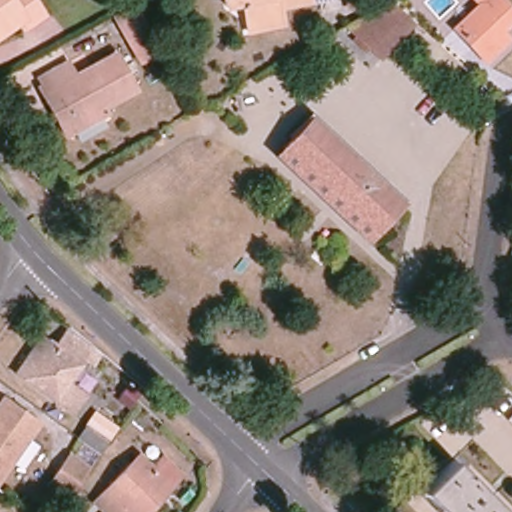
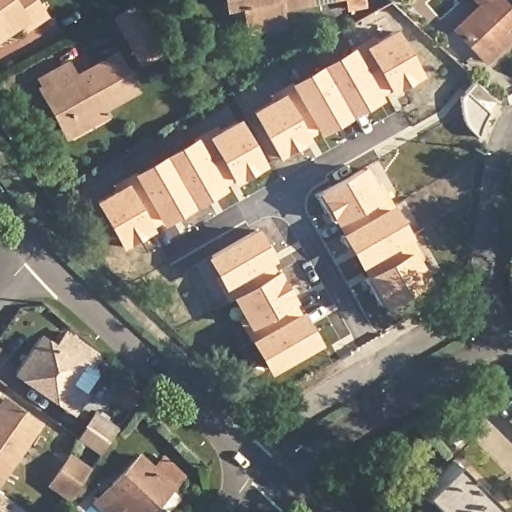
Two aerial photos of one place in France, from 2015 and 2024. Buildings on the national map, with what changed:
unchanged [(25,24),(20,16),(0,30),(0,0),(35,0),(42,11),(25,24)]
unchanged [(283,13),(245,21),(242,9),(221,14),(219,0),(297,0),(281,4),(283,13)]
unchanged [(476,0),(499,0),(512,13),(512,21),(502,31),(510,40),(486,64),(453,29),(479,4),(476,0)]
demolished [(407,18),(374,56),(343,27),(388,1),(407,18)]
unchanged [(117,25),(122,21),(135,15),(151,42),(133,53),(117,25)]
new [(270,98),(267,93),(288,81),(353,45),(371,35),(373,39),(394,26),(421,75),(275,157),(249,110),(270,98)]
unchanged [(38,80),(67,63),(75,76),(116,54),(136,90),(69,128),(49,93),(46,94),(38,80)]
new [(113,189),(110,183),(132,171),(196,136),(214,126),(214,130),(238,117),(265,165),(120,247),(93,200),(113,189)]
demolished [(372,236),(280,151),(310,119),(401,205),(372,236)]
new [(364,164),(375,184),(379,181),(390,203),(392,202),(411,236),(406,238),(431,279),(382,308),(316,193),(364,164)]
new [(255,226),(320,344),(267,374),(247,340),(235,318),(240,315),(230,298),(226,301),(214,278),(215,276),(204,255),(255,226)]
unchanged [(93,367),(84,361),(65,390),(81,401),(72,414),(56,402),(24,379),(49,342),(56,348),(65,333),(100,357),(93,367)]
unchanged [(0,477),(0,405),(4,400),(39,425),(0,477)]
unchanged [(77,439),(84,430),(96,413),(117,429),(105,446),(100,455),(77,439)]
unchanged [(506,422),(512,416),(512,427),(506,422)]
unchanged [(90,467),(71,499),(46,484),(69,453),(90,467)]
unchanged [(165,456),(184,474),(172,486),(170,484),(142,512),(105,512),(95,503),(139,457),(152,469),(165,456)]
unchanged [(418,489),(451,456),(507,512),(441,512),(418,489)]
unchanged [(0,499),(20,512),(0,512),(0,499)]

